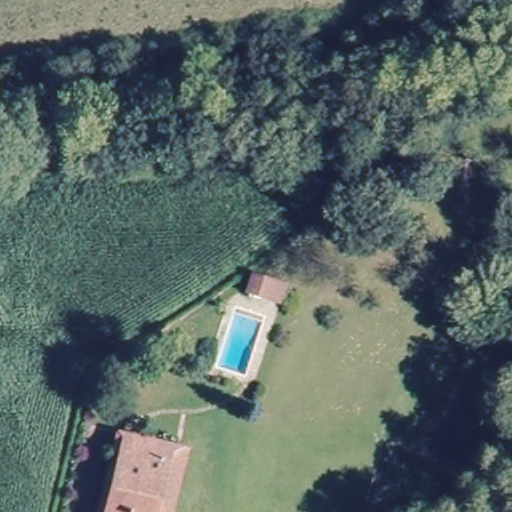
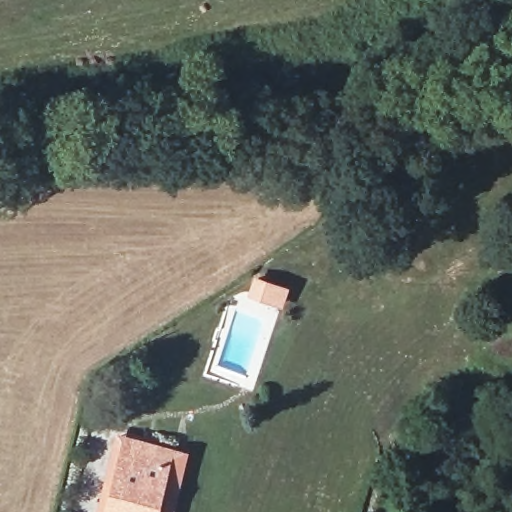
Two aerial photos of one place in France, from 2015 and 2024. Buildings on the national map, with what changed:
unchanged [(388,180),(399,195),(374,211),(364,196),(388,180)]
unchanged [(250,277),(285,288),(280,305),(245,293),(250,277)]
unchanged [(152,512),(100,512),(120,437),(167,450),(152,512)]
unchanged [(168,512),(152,512),(167,450),(183,454),(168,512)]

